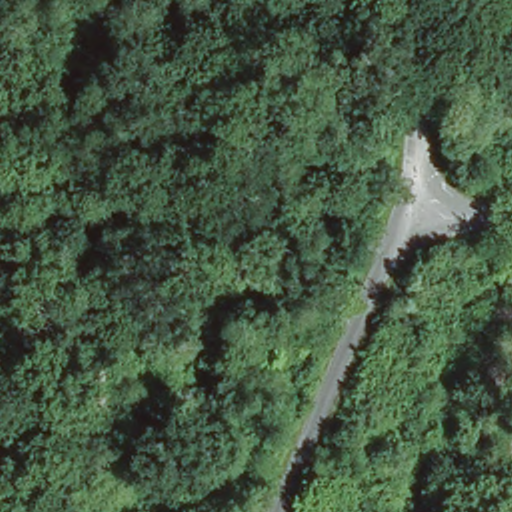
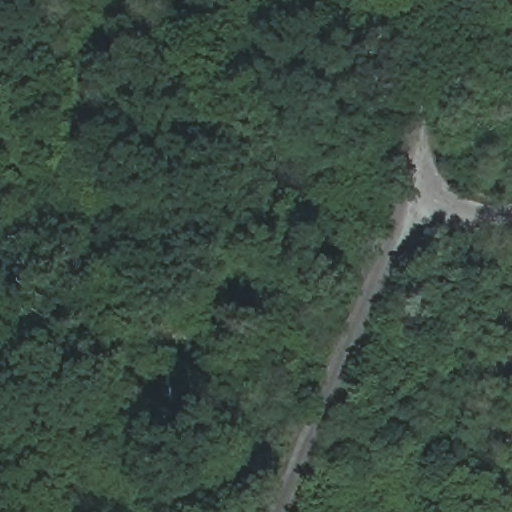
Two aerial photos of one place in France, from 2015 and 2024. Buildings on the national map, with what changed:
[]

